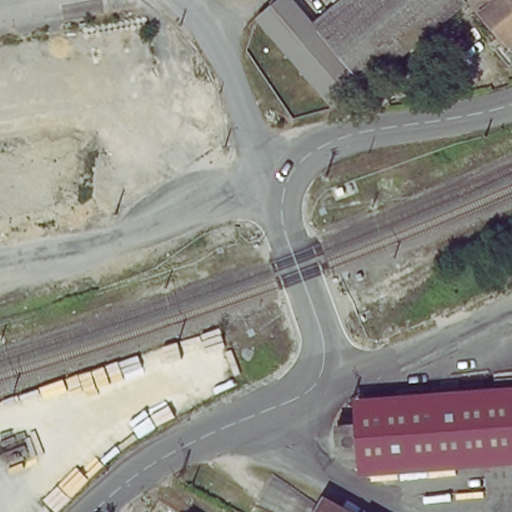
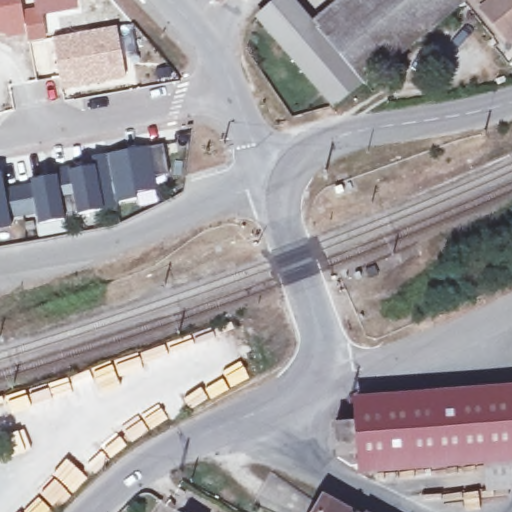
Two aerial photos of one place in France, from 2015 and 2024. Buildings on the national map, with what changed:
new [(6,30),(0,31),(0,0),(19,0),(24,31),(7,35),(6,30)]
new [(37,0),(74,0),(76,10),(39,15),(37,0)]
unchanged [(453,0),(459,7),(414,42),(363,84),(318,33),(358,0),(453,0)]
unchanged [(504,42),(467,0),(512,0),(512,44),(508,40),(504,42)]
unchanged [(363,84),(335,107),(263,25),(290,3),(318,33),(363,84)]
demolished [(160,89),(106,98),(103,69),(127,62),(118,19),(143,13),(160,89)]
new [(62,92),(54,40),(117,29),(125,79),(62,92)]
new [(144,189),(146,201),(136,172),(107,175),(65,182),(53,184),(41,180),(42,180),(41,177),(66,172),(65,165),(81,162),(82,167),(105,163),(103,153),(174,140),(179,170),(164,172),(167,185),(144,189)]
demolished [(103,219),(0,236),(0,182),(8,180),(12,201),(46,195),(41,175),(94,167),(103,219)]
new [(0,233),(0,172),(10,170),(13,185),(33,181),(40,216),(19,220),(19,225),(20,230),(0,233)]
new [(40,216),(33,181),(41,180),(53,184),(65,182),(107,175),(136,172),(146,201),(126,205),(127,210),(88,217),(89,220),(49,227),(47,215),(40,216)]
unchanged [(147,500),(169,512),(140,512),(147,500)]
unchanged [(326,500),(347,512),(319,512),(326,500)]

